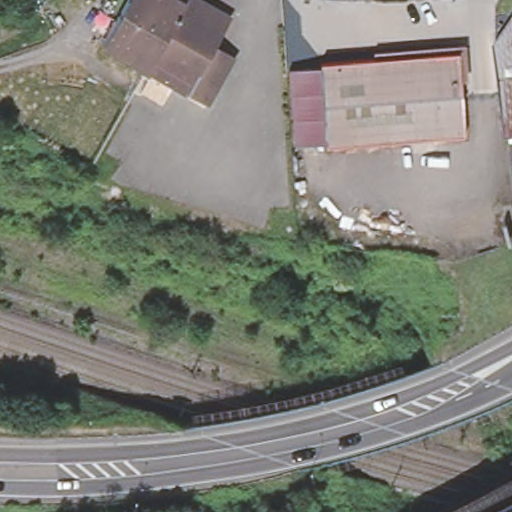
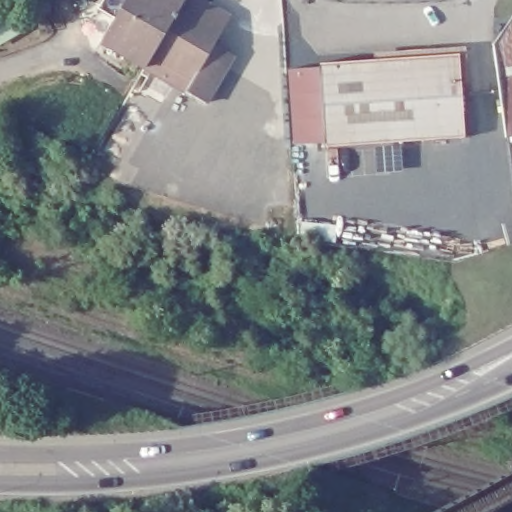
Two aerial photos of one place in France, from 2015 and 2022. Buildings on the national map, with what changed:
unchanged [(190,1),(208,0),(224,9),(228,19),(216,38),(217,55),(227,61),(205,99),(145,63),(101,37),(123,0),(188,0),(190,1)]
unchanged [(512,11),(512,72),(504,12),(512,11)]
unchanged [(317,64),(317,57),(456,49),(461,133),(290,140),(288,64),(317,64)]

